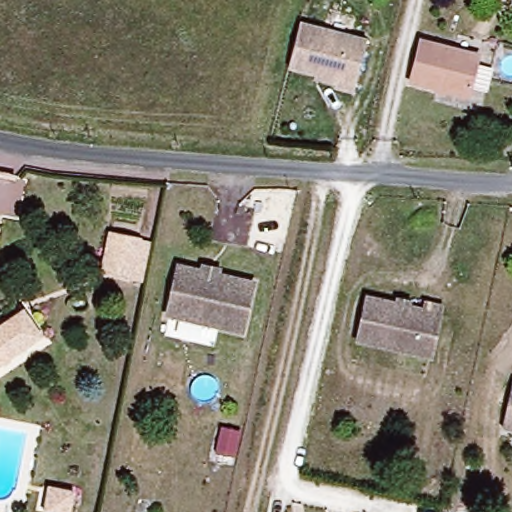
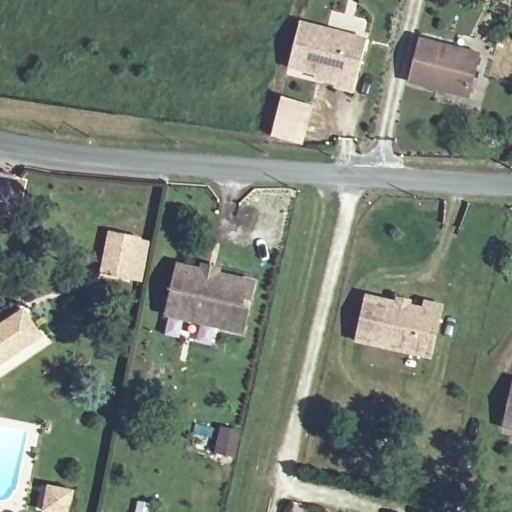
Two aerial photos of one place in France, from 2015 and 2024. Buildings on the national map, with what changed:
unchanged [(354,95),(332,90),(334,81),(288,70),(299,26),(367,43),(354,95)]
unchanged [(411,83),(422,41),(476,55),(465,97),(411,83)]
new [(281,104),(310,111),(300,151),(271,144),(281,104)]
unchanged [(132,279),(105,273),(114,233),(140,238),(132,279)]
unchanged [(251,286),(241,336),(165,321),(174,271),(200,276),(200,269),(215,269),(216,281),(224,281),(251,286)]
unchanged [(426,301),(441,304),(431,356),(356,341),(365,297),(395,302),(397,295),(412,300),(411,307),(424,309),(426,301)]
unchanged [(38,332),(45,341),(20,356),(2,368),(0,367),(0,328),(23,312),(38,332)]
unchanged [(503,434),(512,398),(512,436),(503,434)]
unchanged [(37,512),(42,488),(67,493),(63,512),(37,512)]

